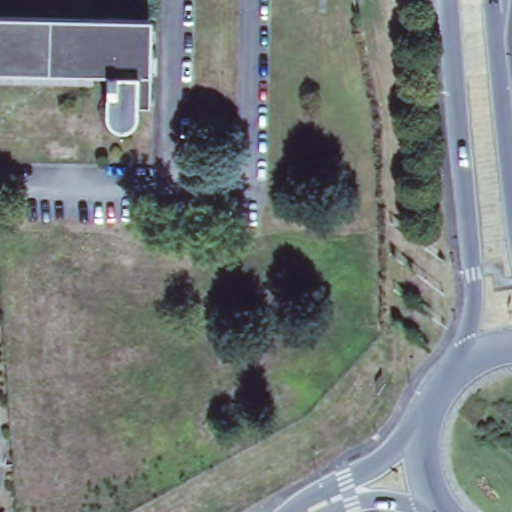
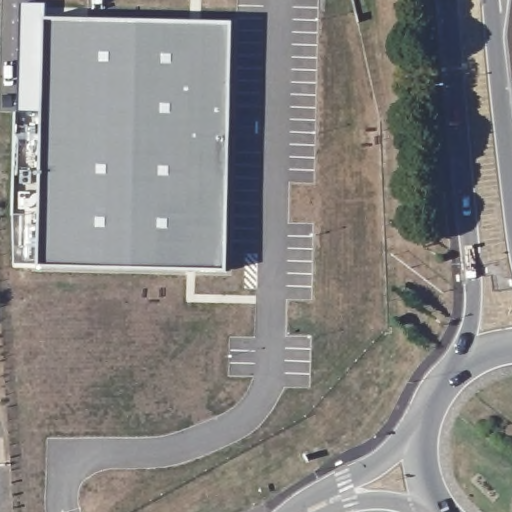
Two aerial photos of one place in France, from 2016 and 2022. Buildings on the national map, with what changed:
new [(36,266),(42,110),(18,111),(22,4),(45,4),(45,20),(232,24),(226,271),(36,266)]
demolished [(155,15),(152,99),(140,97),(139,113),(133,124),(127,127),(116,127),(106,119),(105,101),(105,67),(0,70),(0,11),(155,15)]

